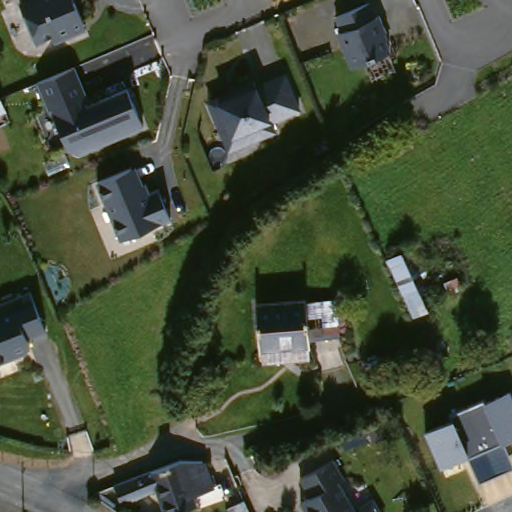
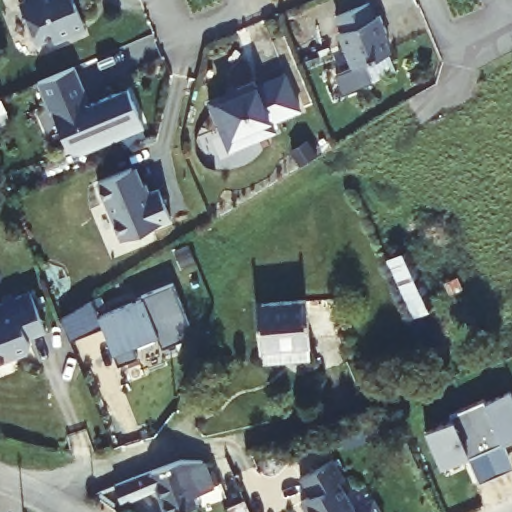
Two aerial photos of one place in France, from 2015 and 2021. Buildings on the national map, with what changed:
unchanged [(78,29),(67,34),(64,39),(48,46),(45,40),(30,46),(14,8),(19,6),(17,0),(66,0),(78,29)]
unchanged [(369,21),(374,19),(381,36),(377,37),(385,55),(348,71),(337,35),(331,20),(363,7),(369,21)]
unchanged [(73,67),(85,95),(80,97),(82,101),(89,104),(127,88),(143,126),(78,153),(68,150),(51,109),(48,110),(37,82),(73,67)]
unchanged [(221,131),(210,106),(208,101),(236,89),(254,82),(256,86),(285,74),(300,109),(271,121),(275,131),(238,146),(229,150),(221,131)]
unchanged [(131,171),(142,190),(151,187),(167,221),(114,236),(94,189),(131,171)]
unchanged [(410,250),(435,306),(414,316),(388,260),(410,250)]
demolished [(512,273),(512,274),(511,273),(512,273)]
new [(190,325),(183,341),(162,349),(158,336),(133,346),(138,359),(118,366),(113,355),(98,317),(142,299),(141,296),(173,284),(190,325)]
unchanged [(44,331),(26,339),(28,345),(14,351),(12,356),(0,362),(0,304),(28,292),(44,331)]
unchanged [(258,351),(255,351),(250,302),(300,297),(300,298),(301,303),(301,310),(304,341),(305,346),(303,347),(304,358),(259,363),(258,351)]
unchanged [(330,300),(334,339),(304,341),(301,310),(301,303),(330,300)]
demolished [(494,337),(512,329),(512,358),(507,360),(494,337)]
unchanged [(512,463),(512,467),(479,481),(469,456),(443,468),(426,431),(453,419),(450,413),(484,399),(486,402),(510,391),(512,395),(512,439),(504,443),(512,463)]
unchanged [(155,466),(185,454),(208,455),(218,481),(198,489),(201,500),(171,512),(161,482),(126,498),(119,480),(155,466)]
unchanged [(332,484),(349,512),(299,512),(295,506),(305,500),(294,482),(326,462),(338,481),(332,484)]
unchanged [(244,498),(250,512),(231,512),(228,505),(244,498)]

